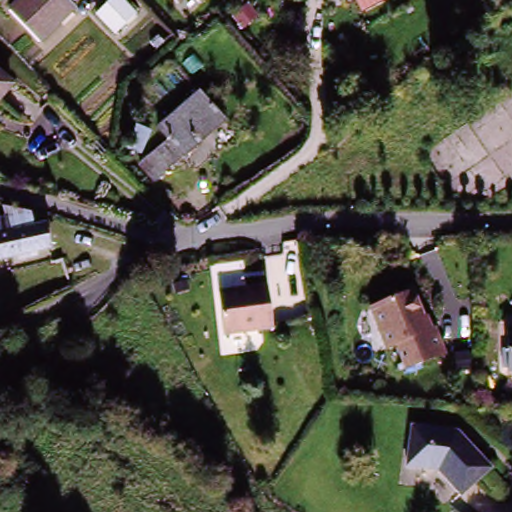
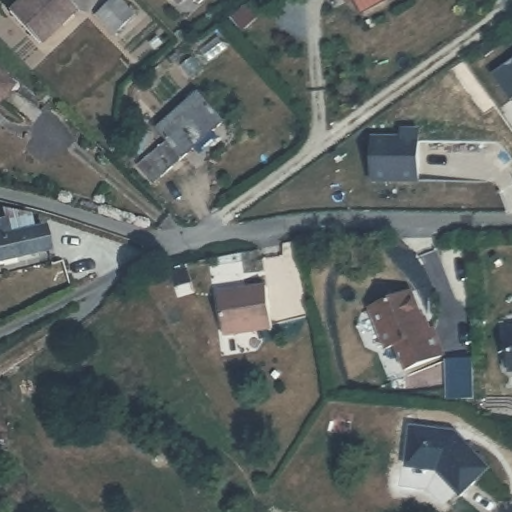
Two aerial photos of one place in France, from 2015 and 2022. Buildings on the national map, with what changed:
unchanged [(38,47),(6,14),(20,0),(66,0),(75,10),(38,47)]
unchanged [(116,37),(97,17),(114,0),(125,0),(139,14),(116,37)]
unchanged [(170,4),(167,0),(174,0),(170,4)]
unchanged [(193,1),(192,0),(194,0),(193,1)]
new [(347,4),(346,0),(355,0),(347,4)]
new [(491,76),(512,60),(512,97),(509,99),(491,76)]
unchanged [(0,102),(0,65),(19,85),(0,102)]
unchanged [(160,177),(136,150),(150,138),(147,134),(192,97),(218,127),(160,177)]
new [(420,182),(372,182),(371,136),(401,137),(400,129),(419,131),(420,182)]
unchanged [(26,210),(34,227),(44,227),(53,252),(0,263),(0,217),(26,210)]
unchanged [(218,337),(213,295),(261,288),(266,331),(218,337)]
unchanged [(427,332),(433,330),(444,357),(404,372),(394,347),(384,352),(368,311),(411,293),(427,332)]
unchanged [(507,327),(512,327),(512,369),(507,370),(507,327)]
unchanged [(492,466),(462,493),(438,468),(407,465),(413,425),(458,431),(492,466)]

